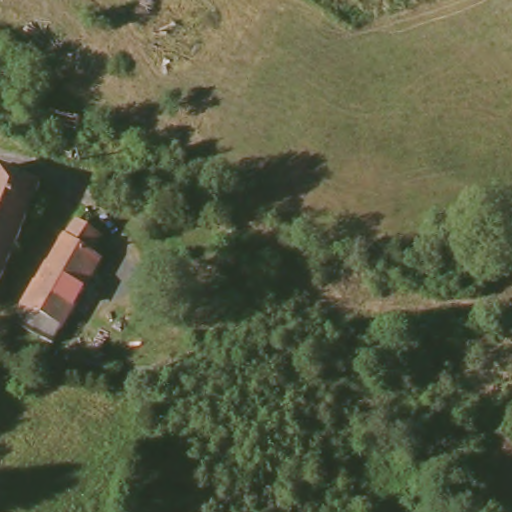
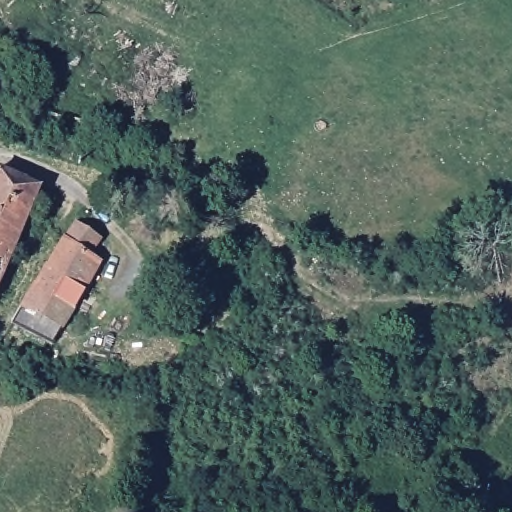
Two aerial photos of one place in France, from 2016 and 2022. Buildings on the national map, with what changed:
unchanged [(3,168),(44,186),(0,295),(0,176),(3,168)]
unchanged [(101,244),(93,259),(103,264),(56,347),(17,325),(45,273),(82,230),(101,244)]
unchanged [(143,422),(153,405),(166,407),(170,407),(158,428),(143,422)]

